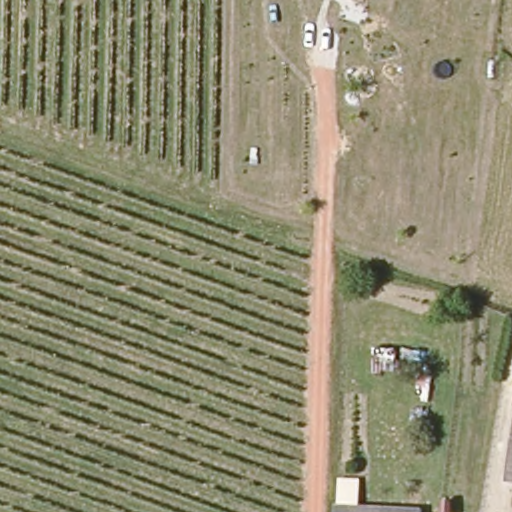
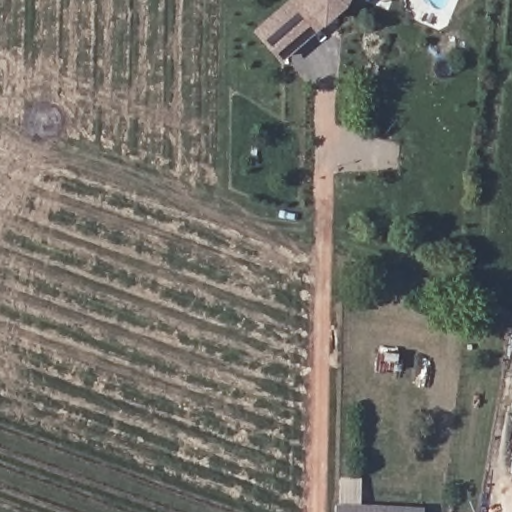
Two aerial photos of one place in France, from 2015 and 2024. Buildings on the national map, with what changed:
new [(348,0),(345,6),(324,26),(280,63),(252,31),(288,0),(348,0)]
unchanged [(367,0),(369,0),(369,1),(367,0)]
unchanged [(512,482),(508,481),(512,458),(512,482)]
unchanged [(335,504),(383,507),(383,512),(335,512),(335,504)]
unchanged [(420,509),(420,512),(383,512),(383,507),(420,509)]

